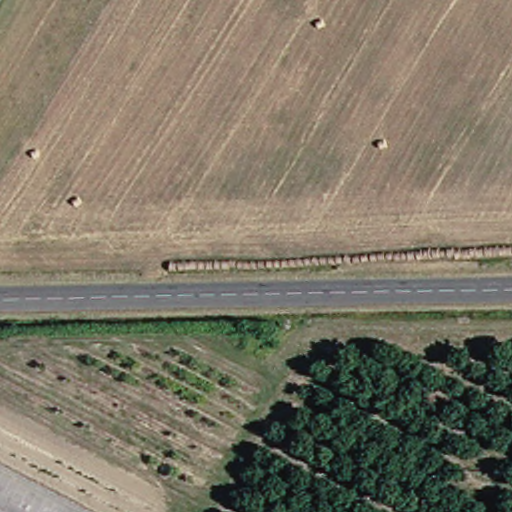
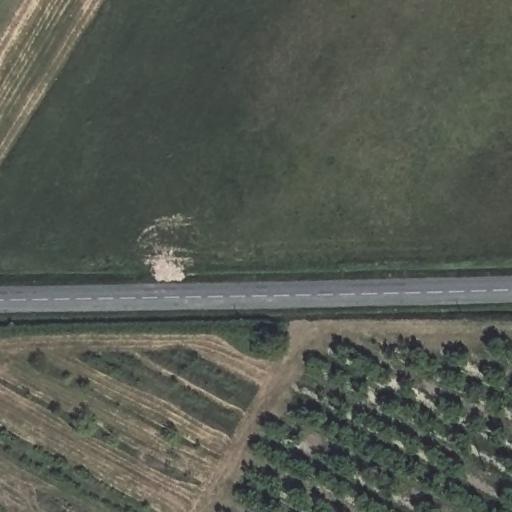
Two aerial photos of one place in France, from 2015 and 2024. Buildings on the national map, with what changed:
demolished [(72,512),(0,512),(0,473),(72,512)]

